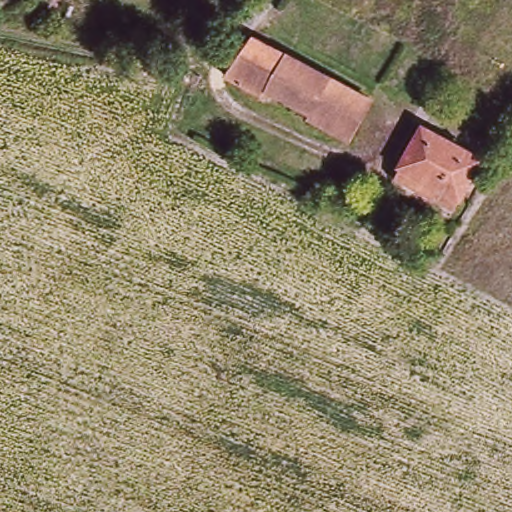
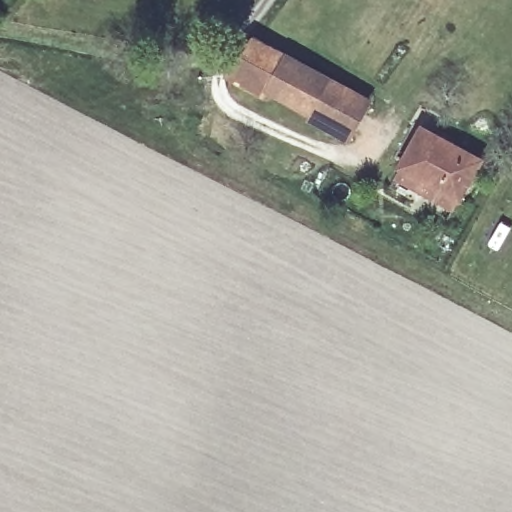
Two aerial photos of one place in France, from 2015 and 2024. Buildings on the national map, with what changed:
unchanged [(323,122),(278,96),(274,103),(247,86),(236,79),(262,40),(343,88),(323,122)]
unchanged [(323,122),(343,88),(376,107),(353,146),(320,128),(323,122)]
unchanged [(399,172),(420,133),(479,165),(458,204),(399,172)]

